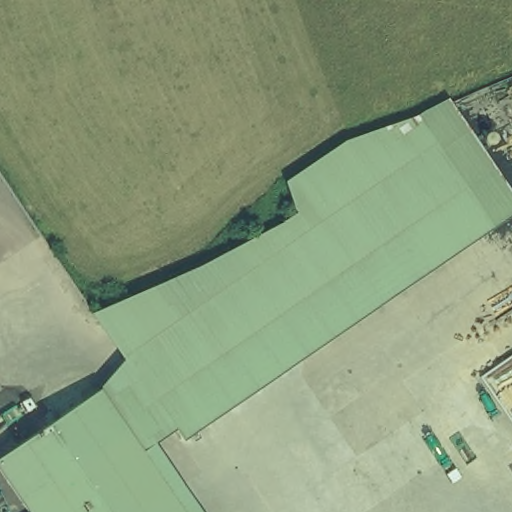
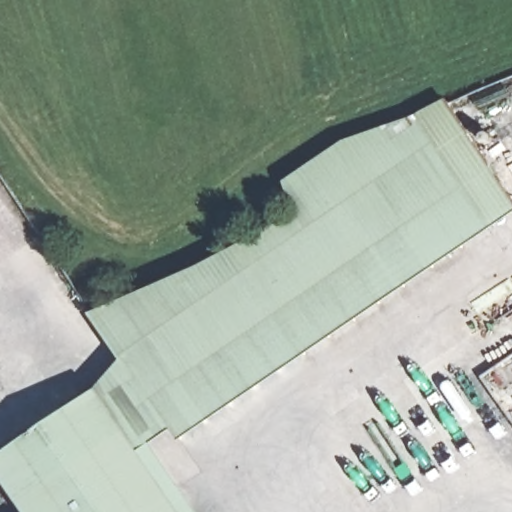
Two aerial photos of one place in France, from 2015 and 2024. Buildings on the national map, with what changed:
unchanged [(0,451),(95,386),(121,356),(93,309),(195,264),(291,210),(282,176),(342,135),(414,113),(449,95),(512,191),(512,209),(180,437),(174,424),(151,439),(200,512),(25,512),(0,475),(0,451)]

